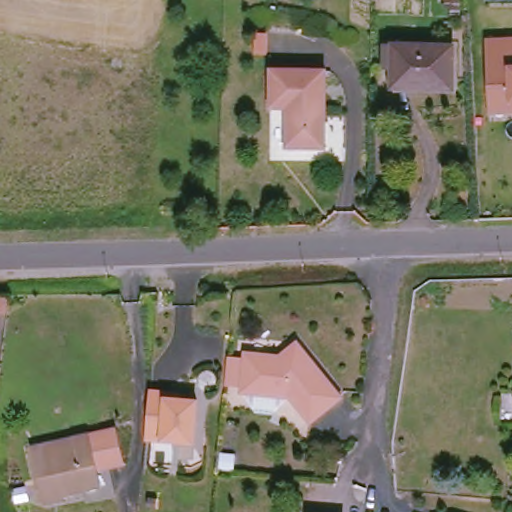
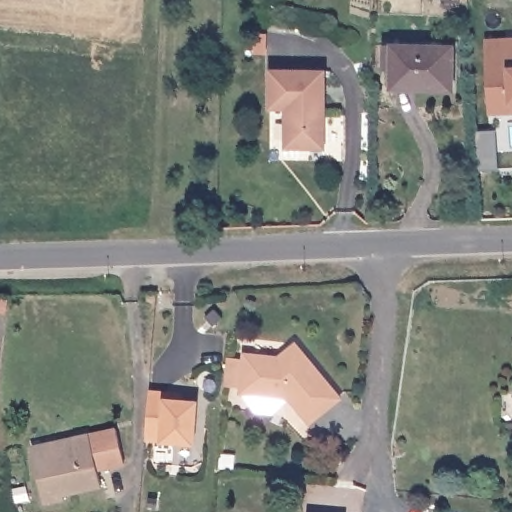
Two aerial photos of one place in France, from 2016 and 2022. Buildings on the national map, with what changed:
unchanged [(489,115),(489,105),(487,40),(512,38),(512,114),(489,115)]
unchanged [(459,52),(458,94),(398,93),(399,74),(389,73),(390,50),(459,52)]
unchanged [(331,75),(330,154),(291,153),(292,114),(276,113),(276,75),(331,75)]
unchanged [(286,356),(303,342),(321,365),(320,370),(324,375),(330,376),(347,398),(316,423),(296,398),(246,393),(247,386),(230,385),(233,357),(250,359),(251,353),(286,356)]
unchanged [(167,393),(182,395),(181,401),(198,402),(194,445),(146,440),(150,392),(167,393)]
unchanged [(130,463),(110,468),(103,470),(107,486),(69,495),(70,499),(49,504),(38,455),(36,448),(79,438),(123,429),(130,463)]

